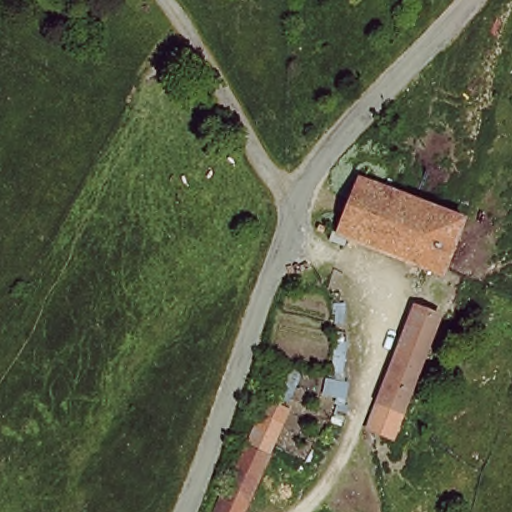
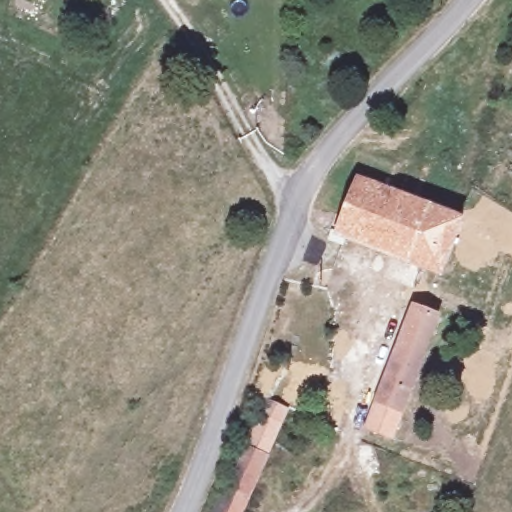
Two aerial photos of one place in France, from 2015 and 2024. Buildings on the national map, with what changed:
unchanged [(466,223),(459,241),(447,272),(336,232),(354,181),(466,223)]
unchanged [(433,332),(387,439),(369,436),(414,315),(440,321),(433,332)]
unchanged [(213,512),(261,398),(292,411),(248,512),(213,512)]

